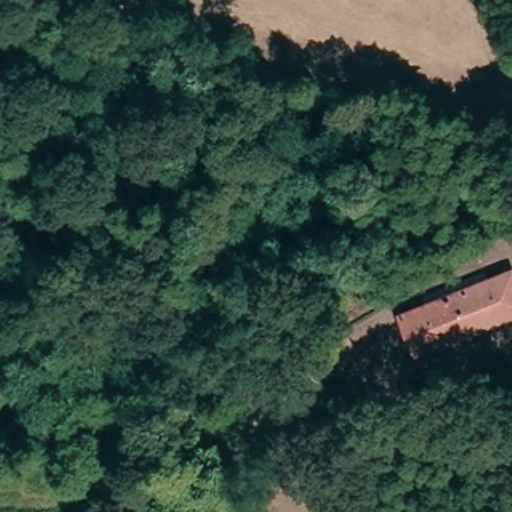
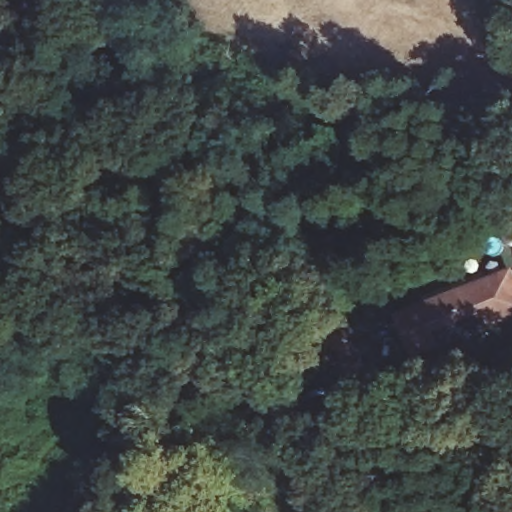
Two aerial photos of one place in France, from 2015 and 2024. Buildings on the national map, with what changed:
unchanged [(512,240),(507,232),(512,229),(512,240)]
unchanged [(512,312),(473,329),(458,293),(512,269),(512,312)]
unchanged [(473,329),(417,353),(402,317),(458,293),(473,329)]
unchanged [(355,344),(367,369),(352,375),(342,349),(355,344)]

